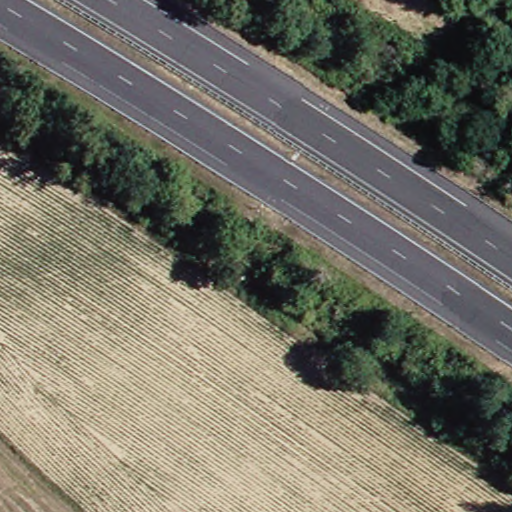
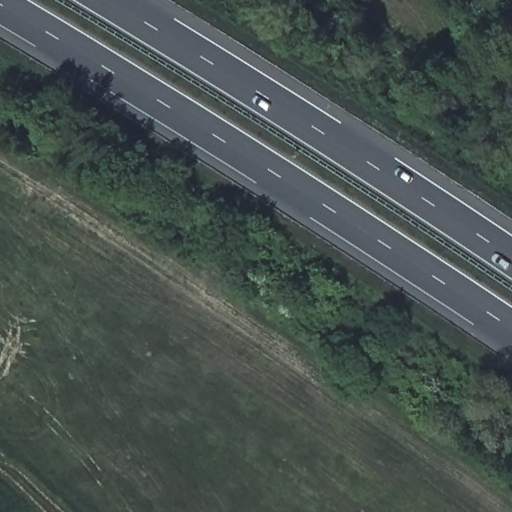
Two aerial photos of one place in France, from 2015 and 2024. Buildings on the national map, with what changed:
[]

